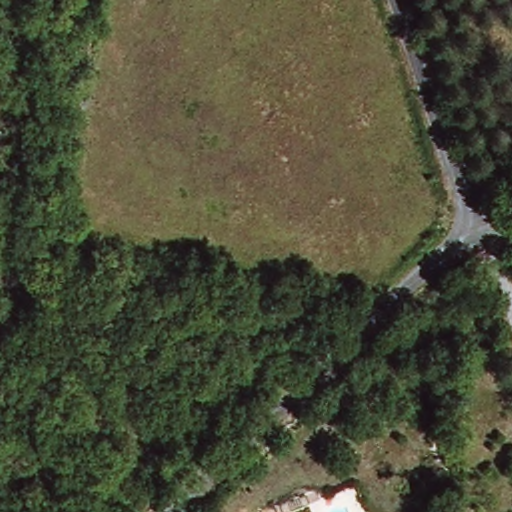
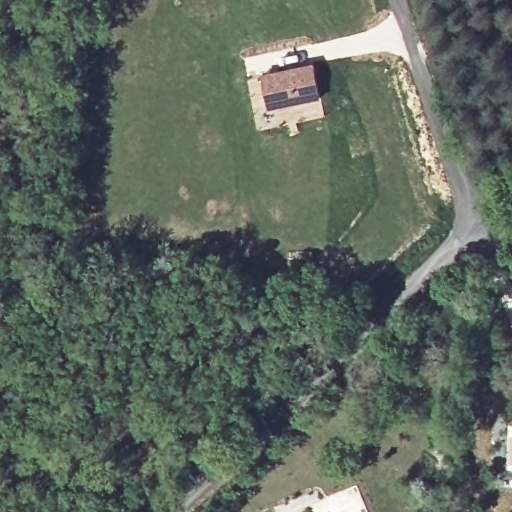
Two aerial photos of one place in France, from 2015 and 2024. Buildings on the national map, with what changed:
new [(314,63),(321,98),(269,110),(260,74),(314,63)]

